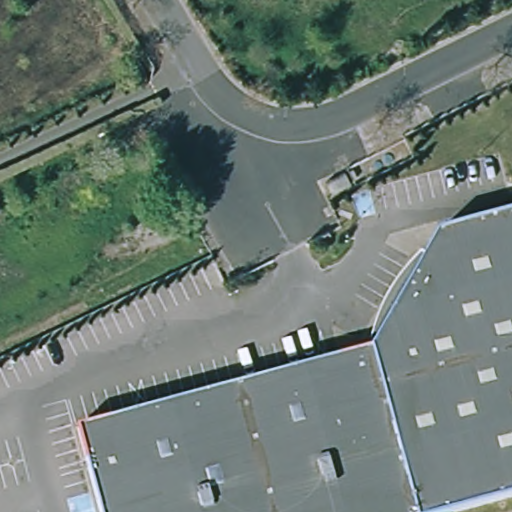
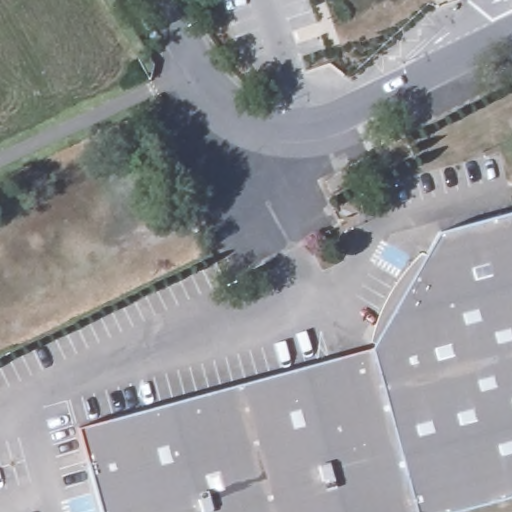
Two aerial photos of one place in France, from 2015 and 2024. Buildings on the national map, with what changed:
unchanged [(344,171),(350,183),(331,192),(325,181),(344,171)]
unchanged [(326,363),(378,349),(444,232),(512,214),(512,499),(463,512),(105,512),(83,428),(326,363)]

